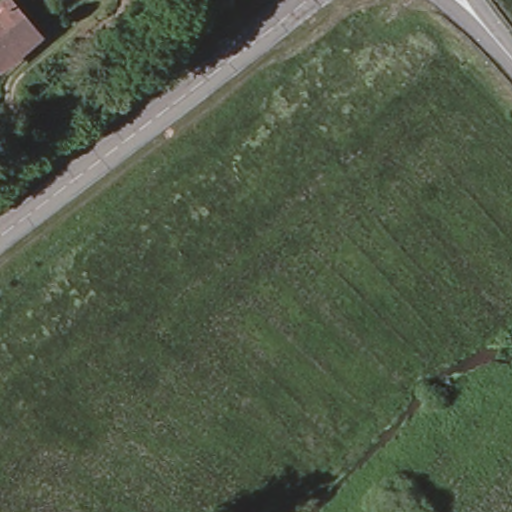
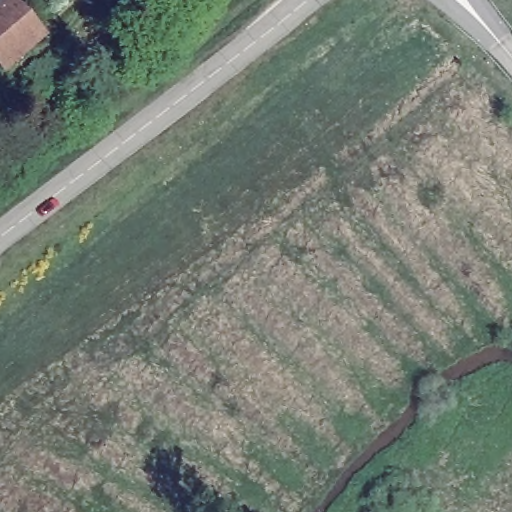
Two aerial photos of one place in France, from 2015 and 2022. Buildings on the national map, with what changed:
unchanged [(33,31),(0,58),(0,11),(11,2),(33,31)]

